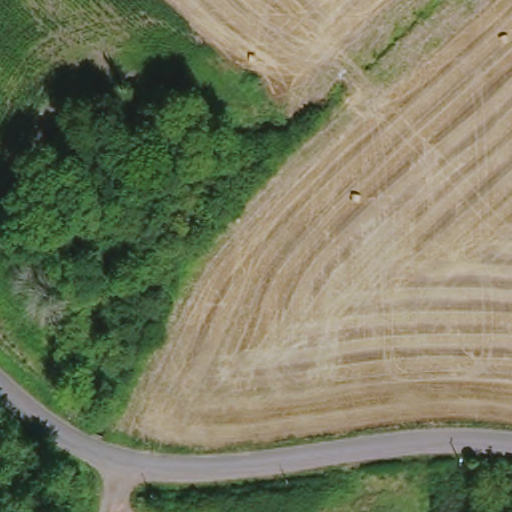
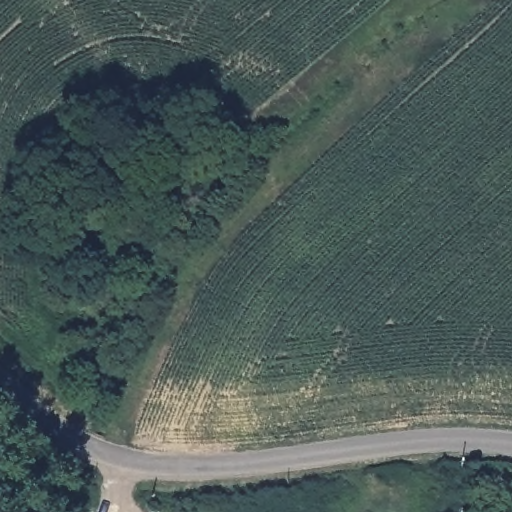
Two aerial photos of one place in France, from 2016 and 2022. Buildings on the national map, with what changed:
[]

